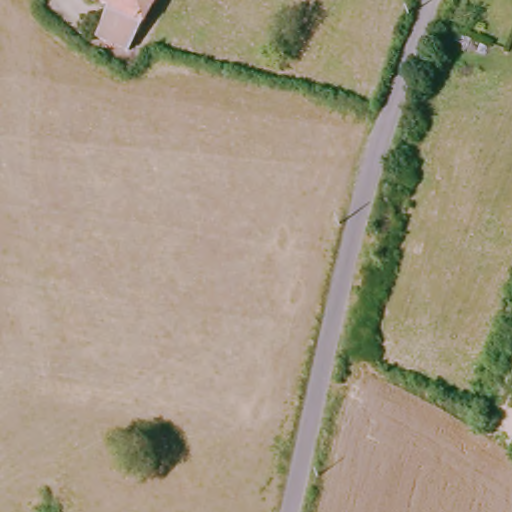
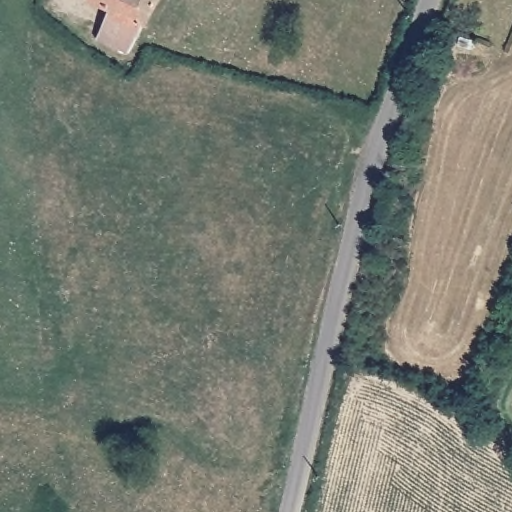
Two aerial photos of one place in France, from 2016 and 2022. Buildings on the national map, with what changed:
unchanged [(98,39),(112,14),(89,0),(158,0),(125,53),(98,39)]

